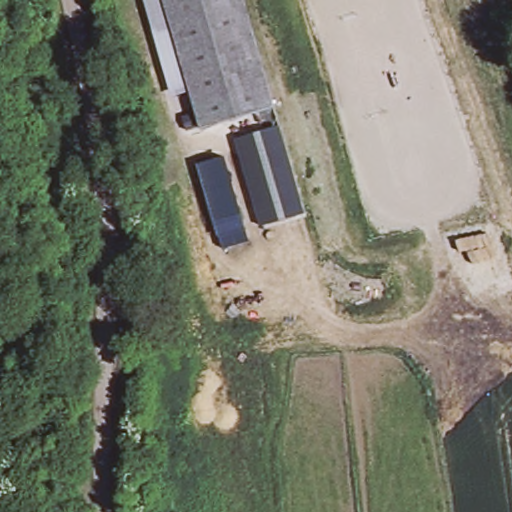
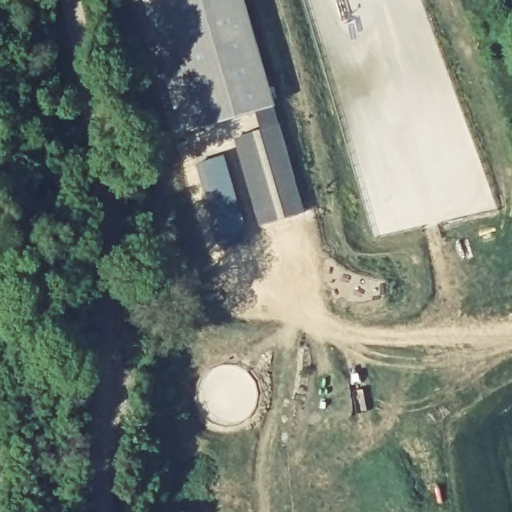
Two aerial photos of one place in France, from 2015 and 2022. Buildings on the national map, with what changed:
unchanged [(202,125),(166,0),(245,0),(275,102),(202,125)]
unchanged [(276,126),(301,214),(257,226),(232,140),(276,126)]
unchanged [(219,157),(238,230),(213,237),(194,164),(219,157)]

